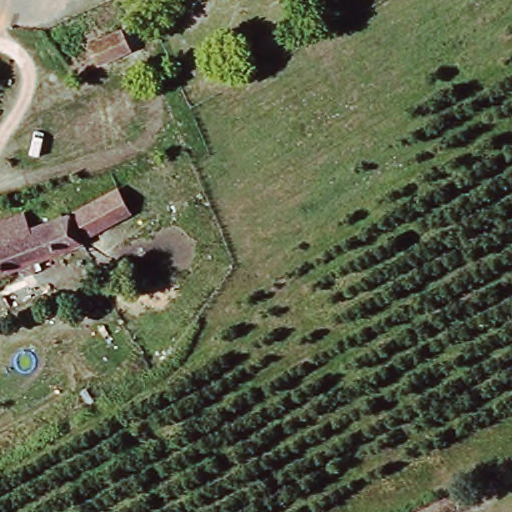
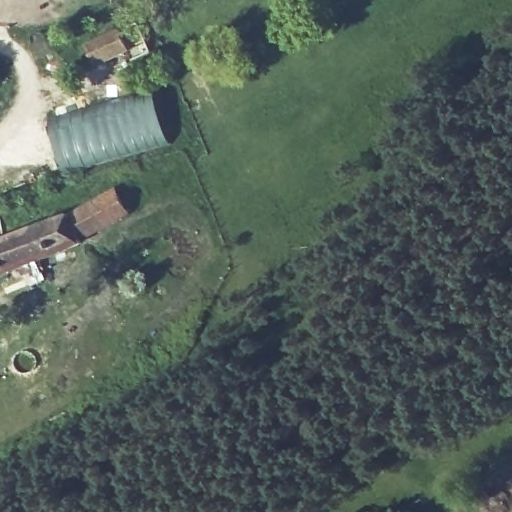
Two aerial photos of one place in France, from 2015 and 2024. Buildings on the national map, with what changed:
unchanged [(99,66),(91,46),(120,31),(130,53),(99,66)]
demolished [(117,85),(140,136),(97,154),(75,103),(117,85)]
new [(154,88),(170,144),(105,163),(72,170),(57,118),(154,88)]
unchanged [(79,239),(69,217),(112,202),(121,225),(79,239)]
unchanged [(75,246),(0,275),(0,225),(18,218),(24,234),(64,220),(75,246)]
unchanged [(77,303),(91,295),(97,311),(83,318),(77,303)]

